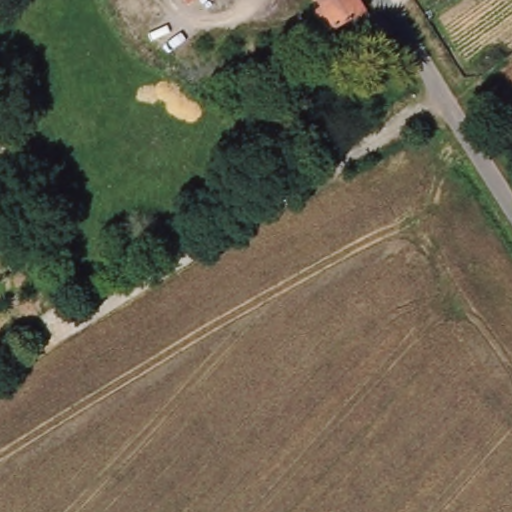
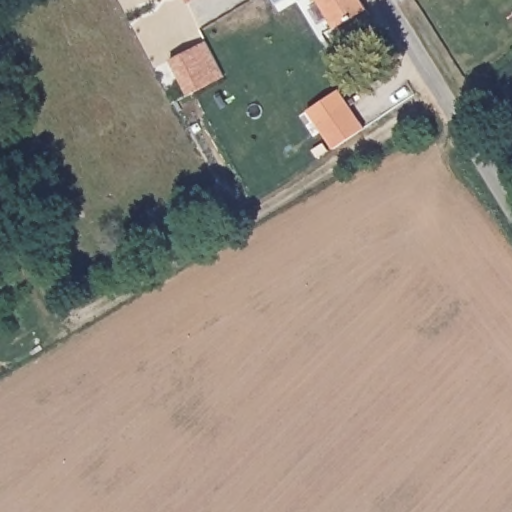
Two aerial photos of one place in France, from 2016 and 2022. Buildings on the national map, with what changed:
unchanged [(183,0),(190,0),(185,4),(183,0)]
unchanged [(333,27),(321,6),(317,0),(357,0),(363,10),(333,27)]
new [(225,76),(189,95),(169,60),(206,40),(225,76)]
new [(366,129),(335,150),(315,122),(346,101),(366,129)]

